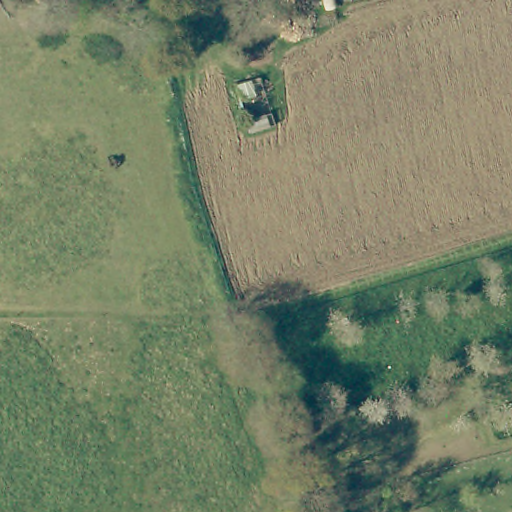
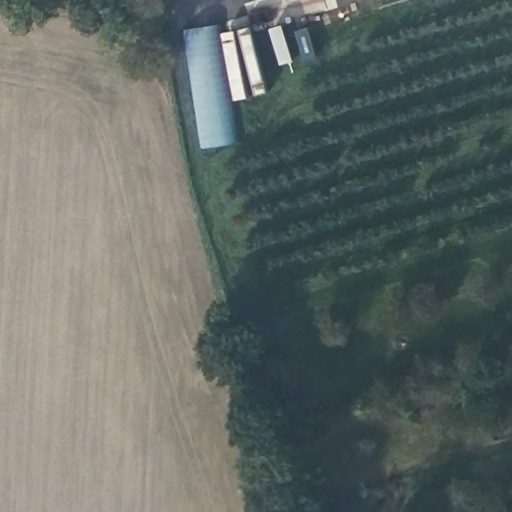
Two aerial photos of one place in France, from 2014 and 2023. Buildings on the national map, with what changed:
new [(185,30),(219,25),(238,143),(203,148),(185,30)]

